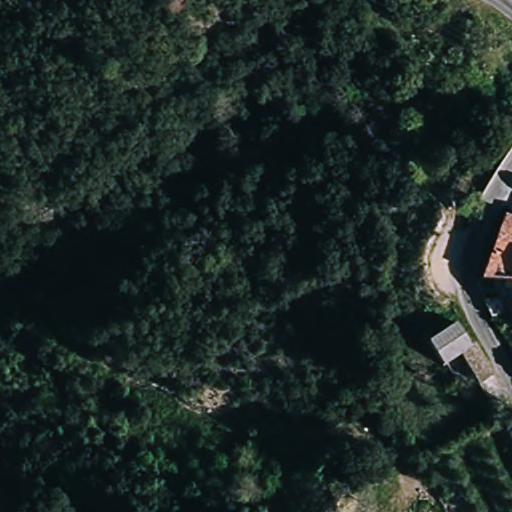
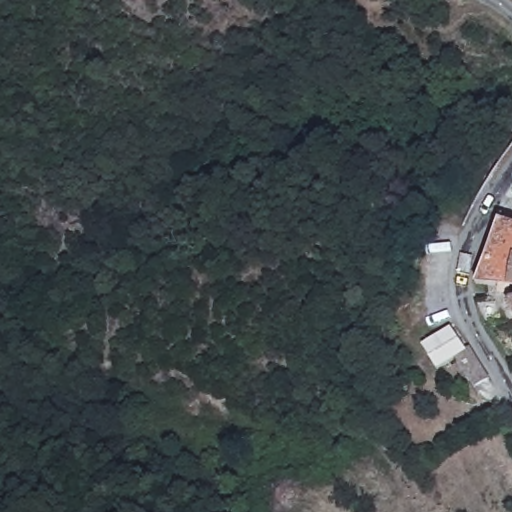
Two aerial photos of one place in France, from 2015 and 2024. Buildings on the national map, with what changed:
unchanged [(498,220),(512,222),(512,282),(489,277),(498,220)]
unchanged [(508,302),(511,316),(500,315),(493,301),(508,302)]
unchanged [(465,392),(460,380),(452,372),(441,375),(438,370),(427,344),(462,330),(473,360),(483,385),(491,404),(472,411),(465,392)]

